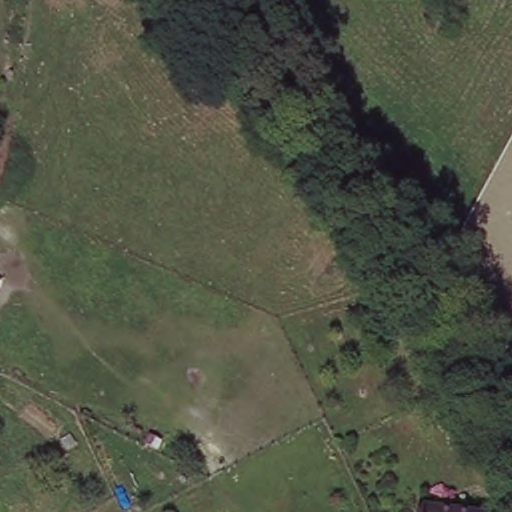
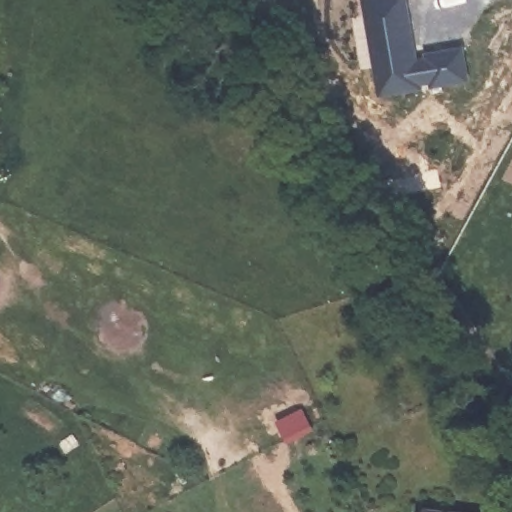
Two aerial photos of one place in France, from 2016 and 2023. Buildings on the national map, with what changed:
new [(417,61),(376,69),(363,1),(372,0),(406,0),(417,61)]
new [(464,49),(470,80),(434,87),(428,55),(464,49)]
new [(417,61),(422,90),(381,97),(376,69),(417,61)]
unchanged [(486,512),(423,512),(424,502),(486,507),(486,512)]

